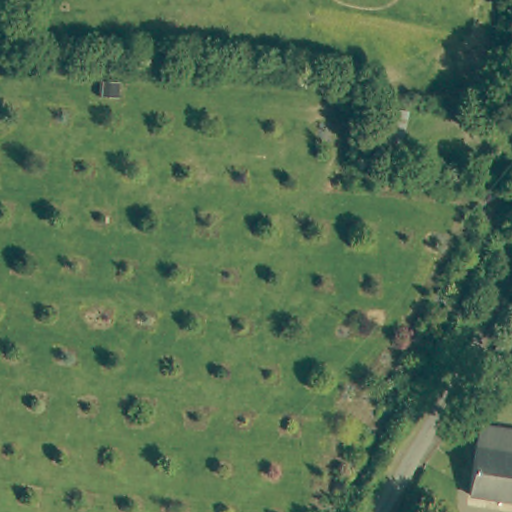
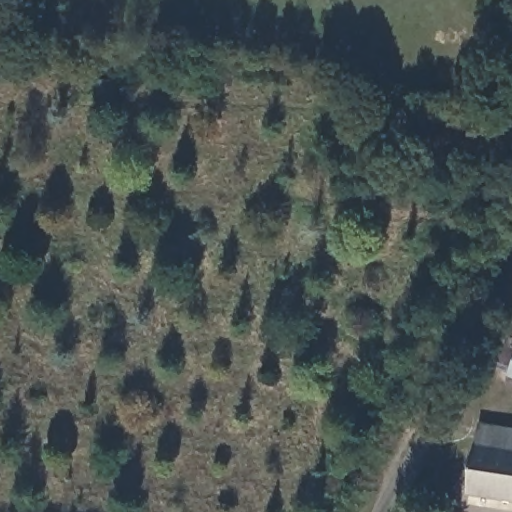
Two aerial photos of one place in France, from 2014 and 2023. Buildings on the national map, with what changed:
unchanged [(406,105),(397,150),(372,145),(382,101),(406,105)]
unchanged [(512,364),(512,376),(508,374),(512,364)]
unchanged [(478,421),(512,426),(512,497),(467,490),(478,421)]

